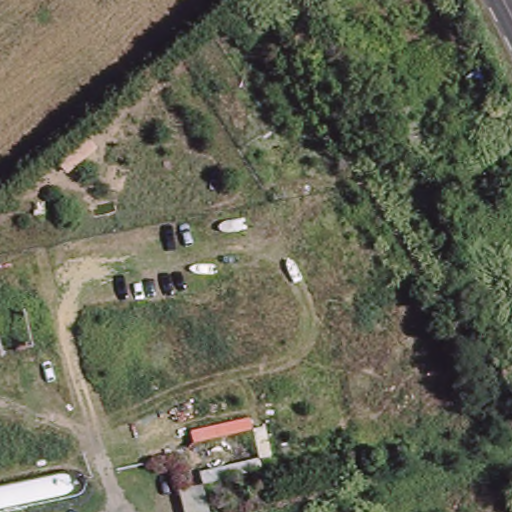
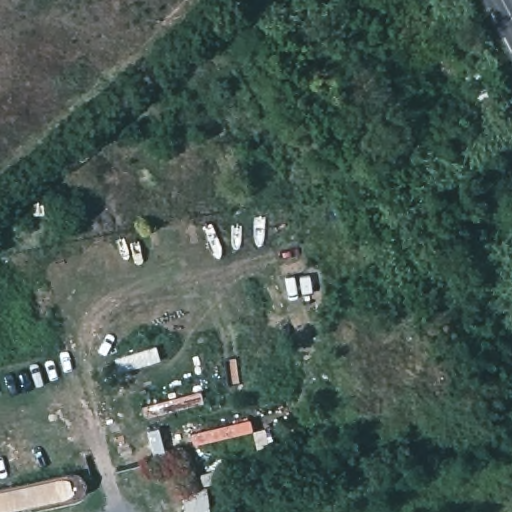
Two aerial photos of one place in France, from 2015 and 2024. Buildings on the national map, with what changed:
unchanged [(190,437),(250,422),(253,436),(191,447),(190,437)]
unchanged [(181,512),(177,491),(197,487),(197,475),(258,461),(262,477),(202,493),(205,512),(181,512)]

